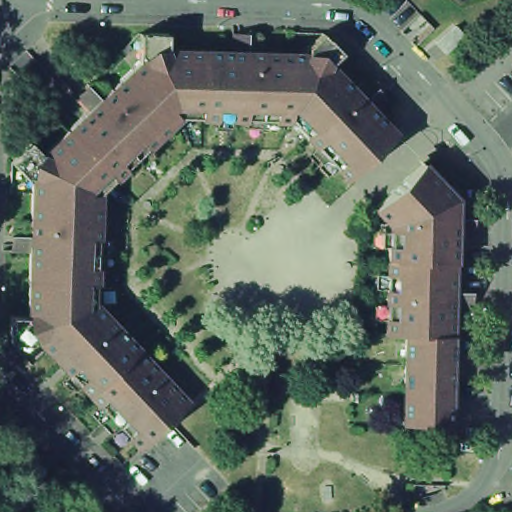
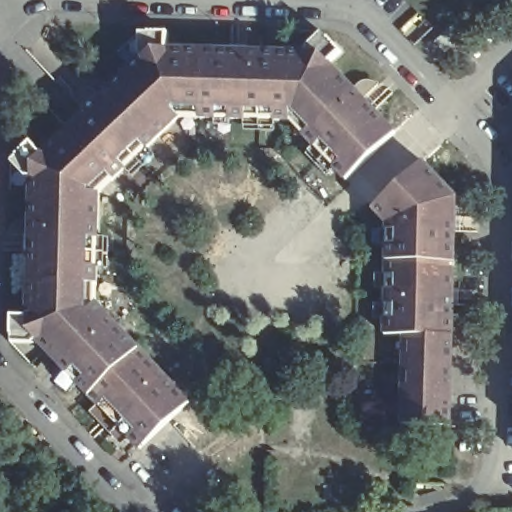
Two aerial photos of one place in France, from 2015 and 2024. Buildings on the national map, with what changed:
unchanged [(455,25),(463,35),(445,52),(435,42),(455,25)]
unchanged [(311,73),(291,120),(290,124),(178,121),(168,67),(166,54),(247,56),(248,36),(251,36),(255,37),(258,40),(260,43),(261,46),(261,50),(261,57),(317,58),(311,73)]
unchanged [(147,51),(148,37),(166,37),(166,54),(168,67),(178,121),(98,197),(61,182),(32,170),(26,170),(16,159),(30,146),(42,159),(100,103),(86,88),(88,86),(92,84),(96,84),(100,84),(103,86),(106,88),(111,93),(151,55),(147,51)]
unchanged [(346,184),(290,124),(291,120),(311,73),(317,58),(317,52),(328,43),(340,57),(328,68),(352,94),(358,89),(361,87),(365,85),(368,85),(372,86),(375,87),(378,90),(362,104),(395,138),(346,184)]
unchanged [(392,239),(392,228),(402,228),(402,217),(386,216),(378,208),(426,162),(460,197),(459,243),(392,239)]
unchanged [(61,182),(98,197),(95,308),(28,321),(30,240),(9,239),(10,235),(11,232),(13,229),(16,227),(20,225),(23,225),(30,225),(32,170),(61,182)]
unchanged [(391,286),(392,239),(459,243),(457,289),(391,286)]
unchanged [(456,335),(453,335),(410,334),(390,333),(391,286),(457,289),(456,335)]
unchanged [(28,335),(25,339),(10,339),(10,320),(28,321),(95,308),(135,351),(87,397),(28,335)]
unchanged [(452,380),(408,379),(410,334),(453,335),(452,380)]
unchanged [(135,351),(188,407),(140,452),(87,397),(135,351)]
unchanged [(407,424),(408,379),(452,380),(451,425),(407,424)]

